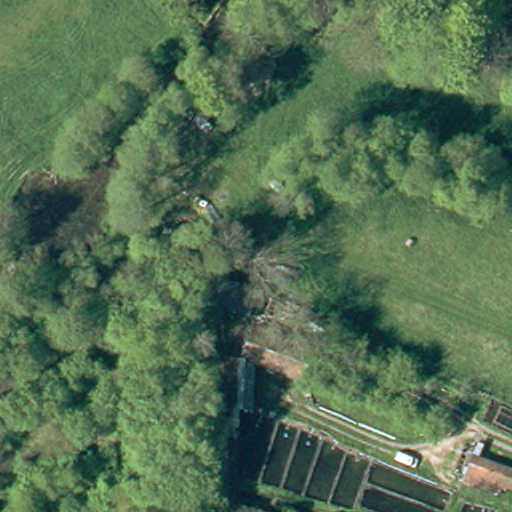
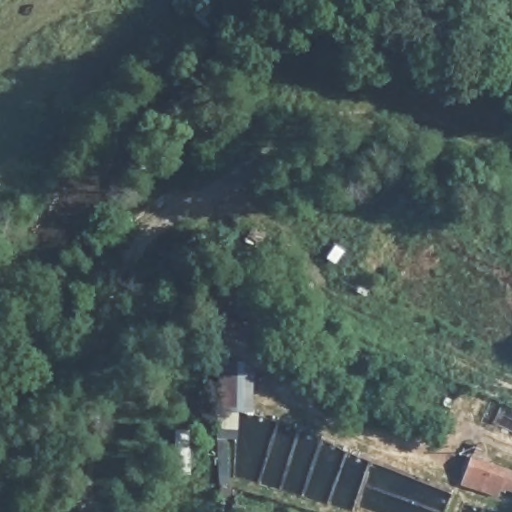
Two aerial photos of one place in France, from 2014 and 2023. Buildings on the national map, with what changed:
unchanged [(302,392),(244,371),(255,340),(313,362),(302,392)]
unchanged [(224,449),(223,420),(222,371),(242,375),(242,420),(239,420),(239,449),(224,449)]

